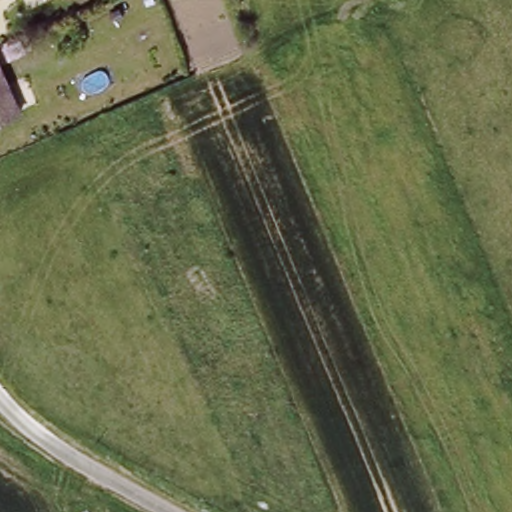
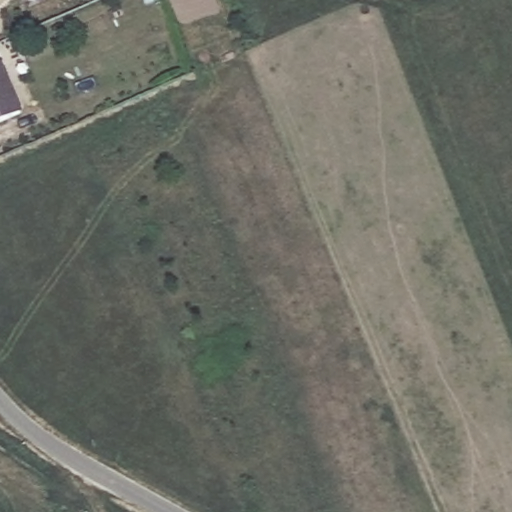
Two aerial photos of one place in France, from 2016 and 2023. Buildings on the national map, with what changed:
unchanged [(2,50),(8,66),(0,69),(0,51),(2,50)]
unchanged [(17,118),(0,125),(0,77),(17,118)]

